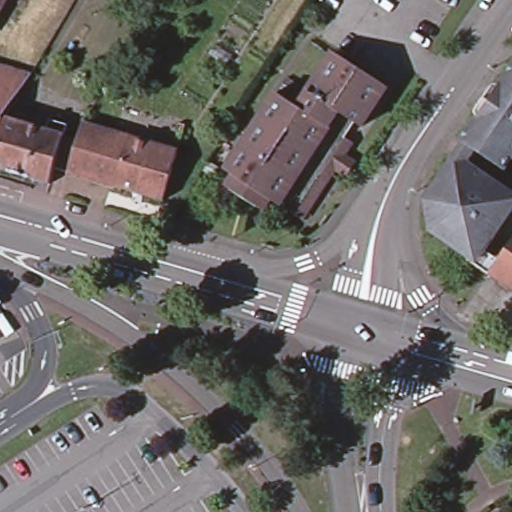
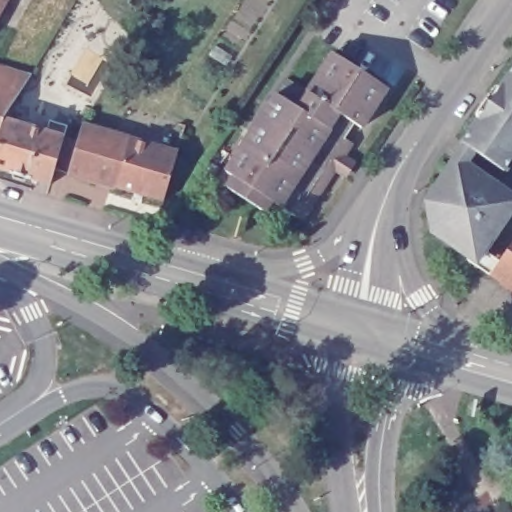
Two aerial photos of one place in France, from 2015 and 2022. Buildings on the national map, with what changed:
unchanged [(29,0),(13,29),(8,26),(0,42),(0,0),(29,0)]
unchanged [(345,153),(354,158),(343,175),(334,169),(302,219),(296,215),(270,199),(263,210),(218,180),(274,91),(286,99),(296,81),(306,88),(331,50),(387,86),(361,126),(354,121),(351,127),(344,136),(346,138),(353,141),(345,153)]
unchanged [(29,73),(4,116),(0,129),(0,64),(29,73)]
unchanged [(471,265),(426,237),(419,205),(447,165),(456,150),(452,147),(508,65),(512,68),(512,155),(498,177),(488,192),(508,205),(486,239),(488,239),(471,265)]
unchanged [(113,185),(68,172),(54,168),(49,184),(0,168),(0,129),(4,116),(46,129),(50,118),(68,124),(64,135),(78,138),(82,124),(88,114),(95,118),(91,127),(129,137),(113,185)]
unchanged [(168,124),(176,126),(179,120),(185,122),(183,129),(176,150),(161,200),(113,185),(129,137),(160,146),(168,124)]
unchanged [(512,243),(512,280),(495,268),(512,243)]
unchanged [(504,512),(497,512),(502,509),(504,512)]

